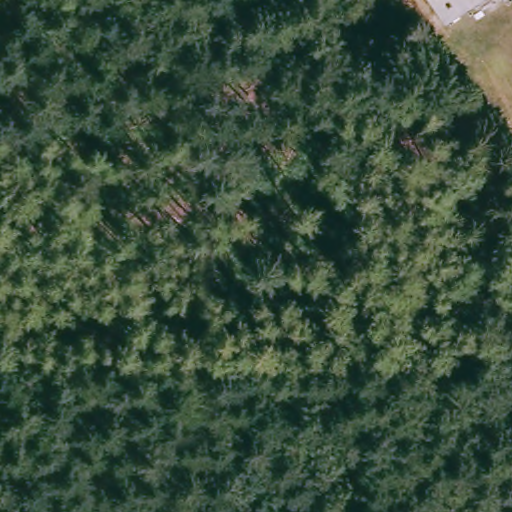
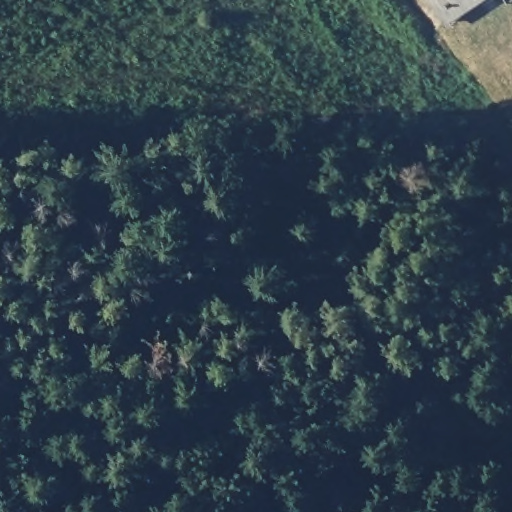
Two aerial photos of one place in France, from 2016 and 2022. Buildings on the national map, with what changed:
unchanged [(424,0),(481,0),(443,27),(424,0)]

